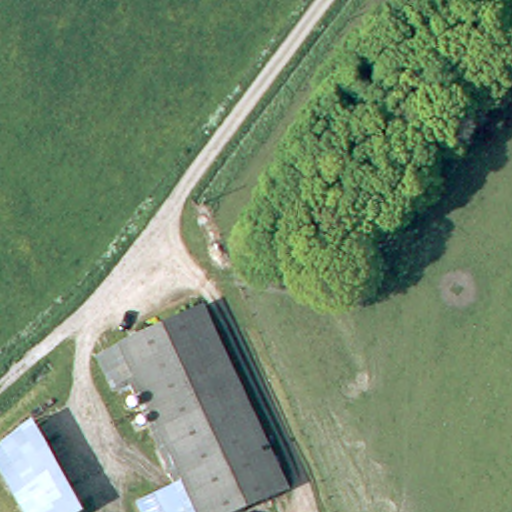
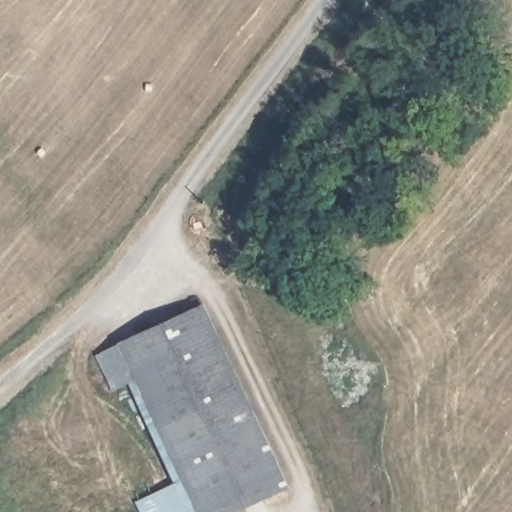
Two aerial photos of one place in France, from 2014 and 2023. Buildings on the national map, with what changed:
unchanged [(176,482),(150,430),(140,433),(127,407),(140,401),(135,388),(117,395),(102,361),(99,354),(208,303),(295,488),(241,512),(201,512),(183,479),(176,482)]
demolished [(29,512),(0,466),(0,445),(32,417),(86,507),(80,512),(29,512)]

